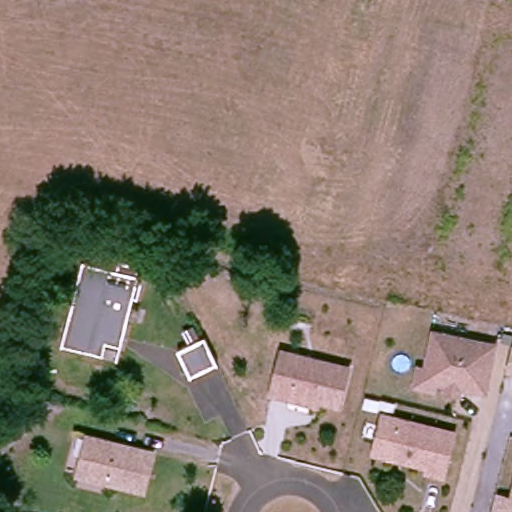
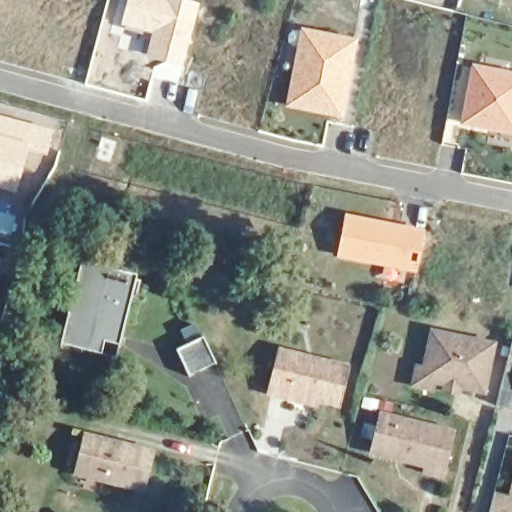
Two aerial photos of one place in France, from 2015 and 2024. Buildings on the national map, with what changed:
new [(121,26),(128,0),(183,0),(200,5),(184,68),(147,58),(153,34),(121,26)]
new [(358,40),(343,119),(286,108),(302,30),(358,40)]
new [(512,136),(461,126),(475,67),(512,74),(512,136)]
new [(0,190),(0,117),(54,131),(47,157),(28,152),(17,195),(0,190)]
new [(3,261),(0,272),(0,260),(3,261)]
unchanged [(59,348),(62,337),(80,266),(114,274),(116,265),(136,270),(134,279),(136,279),(135,284),(139,285),(135,302),(130,300),(128,310),(122,308),(119,322),(124,323),(120,341),(115,362),(59,348)]
unchanged [(444,390),(445,384),(432,381),(430,388),(413,384),(417,367),(424,369),(433,331),(494,344),(483,392),(459,387),(458,392),(444,390)]
unchanged [(202,336),(204,339),(215,362),(188,375),(175,349),(202,336)]
unchanged [(506,346),(512,347),(512,371),(501,369),(506,346)]
unchanged [(289,398),(270,393),(281,350),(348,366),(339,404),(318,399),(316,405),(289,398)]
unchanged [(512,389),(510,389),(512,381),(512,389)]
unchanged [(455,433),(443,476),(427,472),(428,466),(374,452),(383,414),(455,433)]
unchanged [(150,455),(141,493),(74,476),(84,439),(150,455)]
unchanged [(509,499),(512,484),(512,512),(487,512),(492,495),(509,499)]

